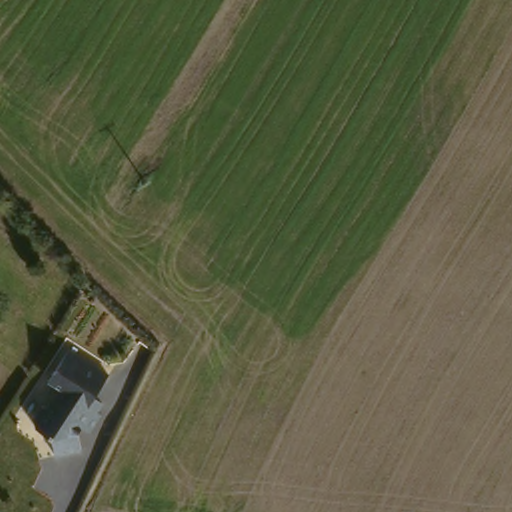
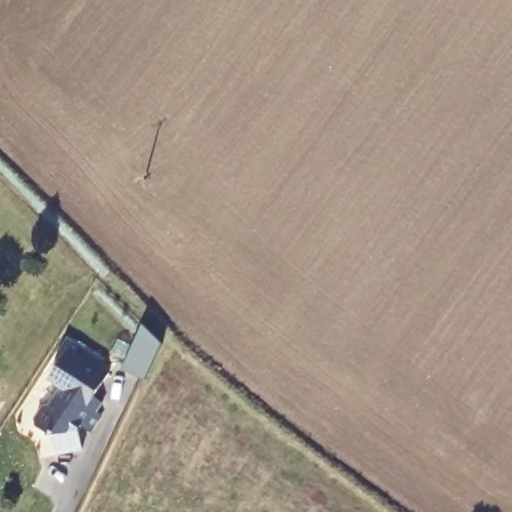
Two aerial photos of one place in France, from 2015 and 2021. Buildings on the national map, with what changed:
unchanged [(109,372),(94,395),(103,401),(97,410),(101,413),(89,430),(81,425),(78,430),(82,447),(56,453),(52,435),(37,426),(36,418),(45,405),(52,404),(63,387),(51,379),(72,347),(109,372)]

